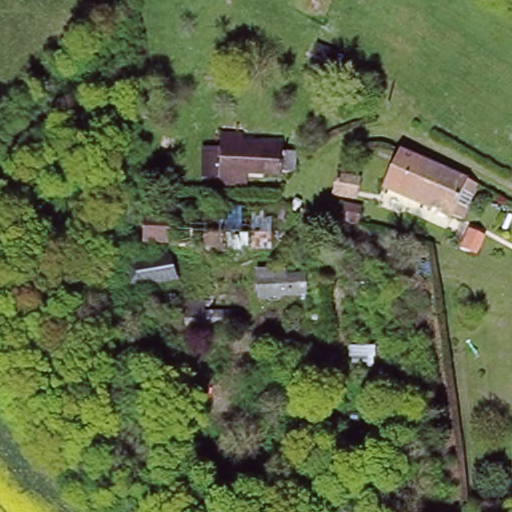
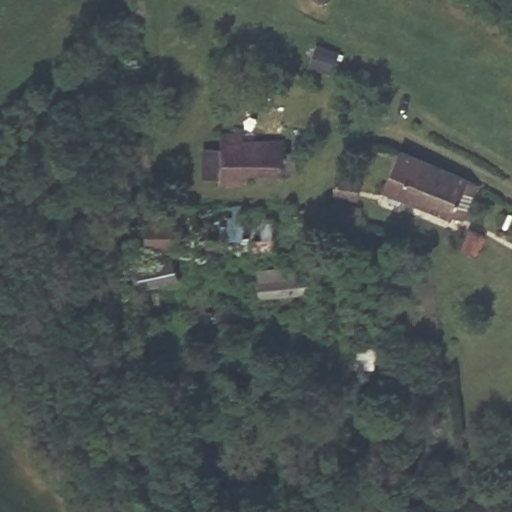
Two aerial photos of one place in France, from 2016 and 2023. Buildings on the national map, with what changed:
unchanged [(252,175),(250,189),(223,191),(223,138),(246,138),(246,145),(287,144),(287,151),(299,151),(299,165),(299,174),(286,174),(252,175)]
unchanged [(397,151),(476,185),(460,219),(450,214),(447,219),(380,185),(397,151)]
unchanged [(337,164),(359,170),(355,188),(333,183),(337,164)]
unchanged [(342,193),(361,199),(356,214),(337,209),(342,193)]
unchanged [(143,217),(170,216),(170,204),(260,204),(264,218),(270,218),(267,245),(170,244),(170,241),(143,240),(143,217)]
unchanged [(476,237),(490,243),(482,260),(468,254),(476,237)]
unchanged [(123,256),(143,252),(153,249),(168,255),(175,275),(130,285),(123,256)]
unchanged [(270,272),(305,276),(303,293),(267,289),(270,272)]
unchanged [(181,308),(236,308),(236,320),(181,322),(181,308)]
unchanged [(375,344),(372,372),(347,371),(347,343),(375,344)]

